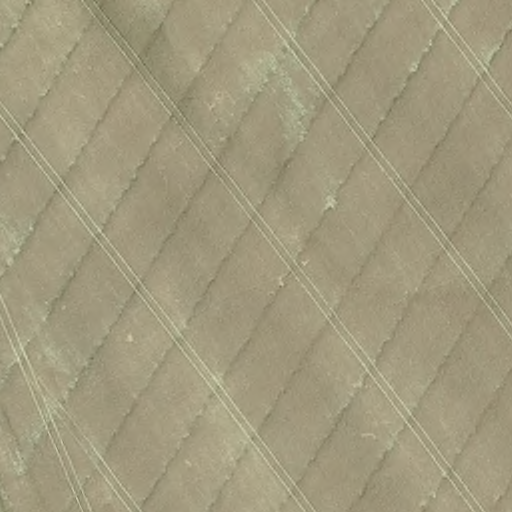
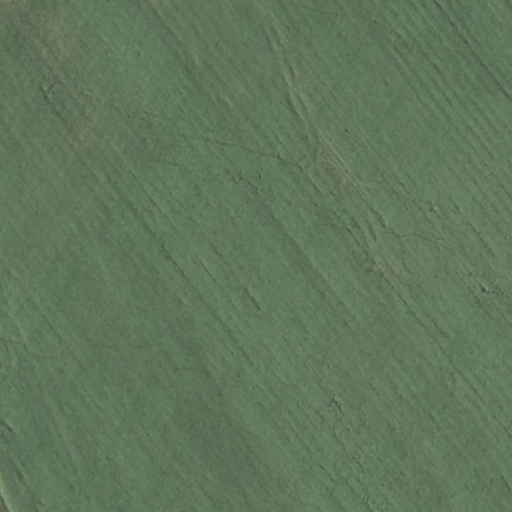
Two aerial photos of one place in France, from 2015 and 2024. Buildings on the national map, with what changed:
[]

